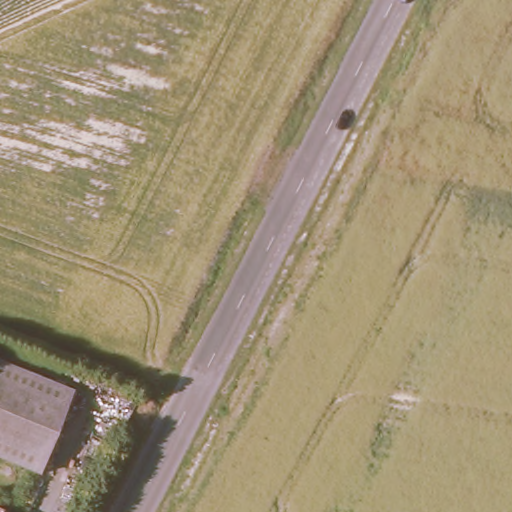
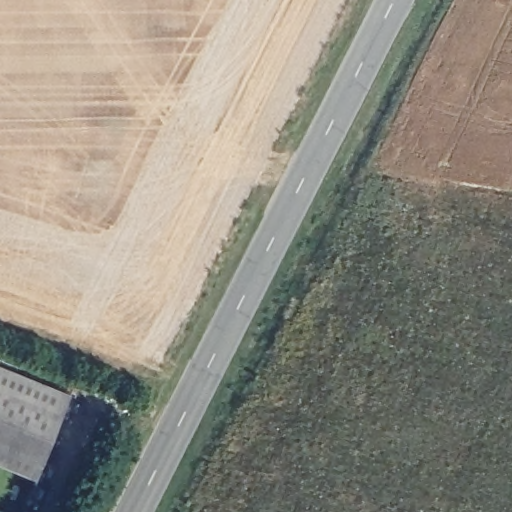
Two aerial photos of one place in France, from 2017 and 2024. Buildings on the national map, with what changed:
unchanged [(36,460),(6,448),(0,446),(0,386),(57,411),(36,460)]

